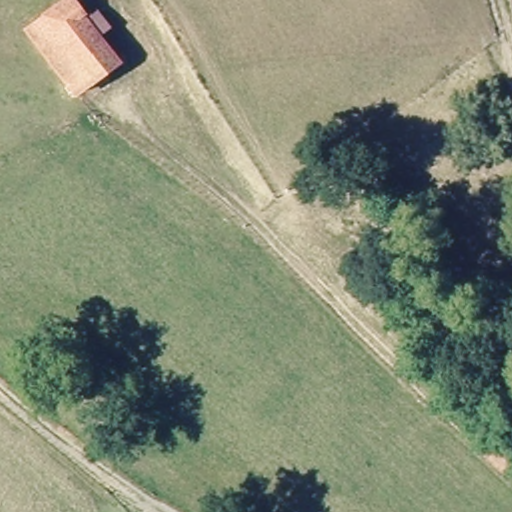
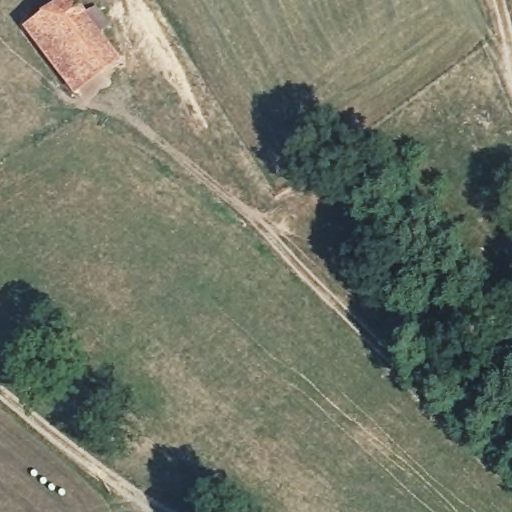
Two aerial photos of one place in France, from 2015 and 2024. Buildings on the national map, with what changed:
unchanged [(74,94),(26,34),(64,0),(71,0),(73,3),(116,62),(74,94)]

